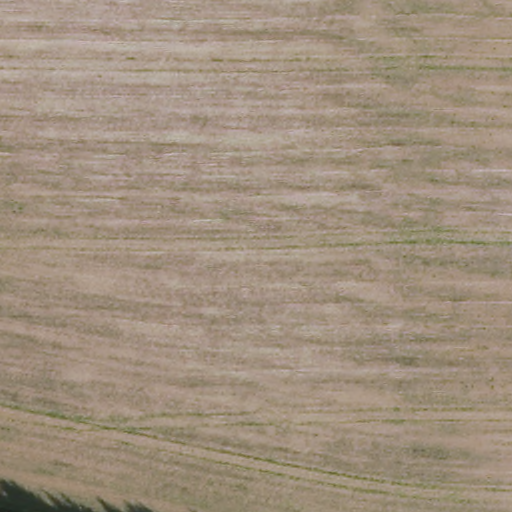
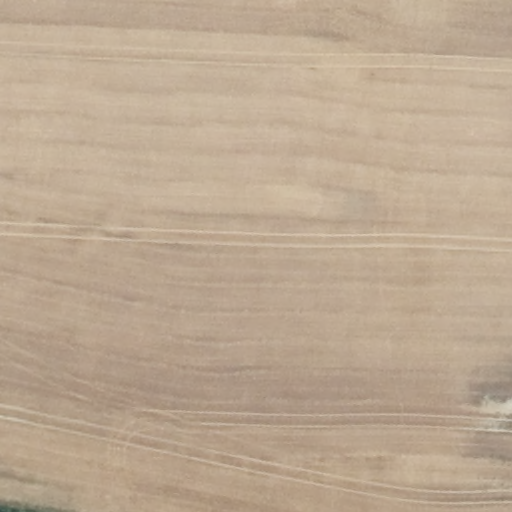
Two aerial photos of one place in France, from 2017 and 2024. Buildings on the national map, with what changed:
[]

